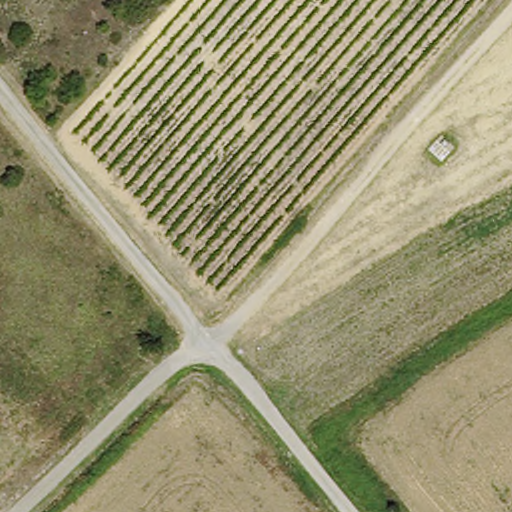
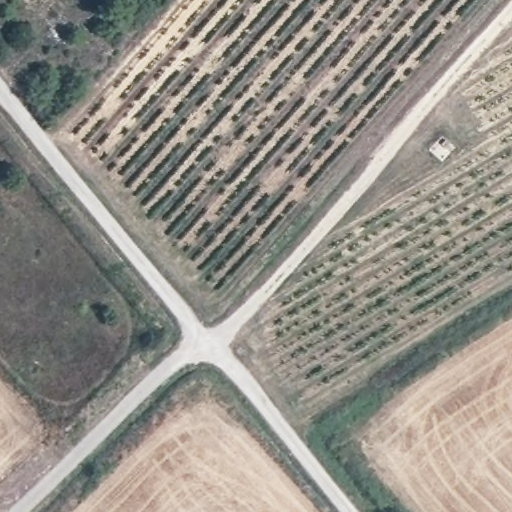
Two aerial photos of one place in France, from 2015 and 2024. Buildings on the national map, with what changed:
[]

